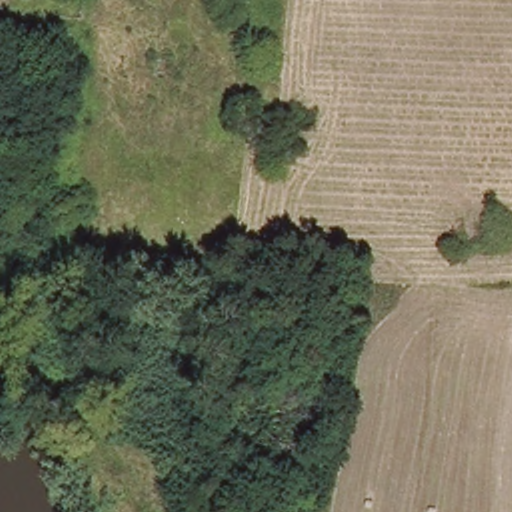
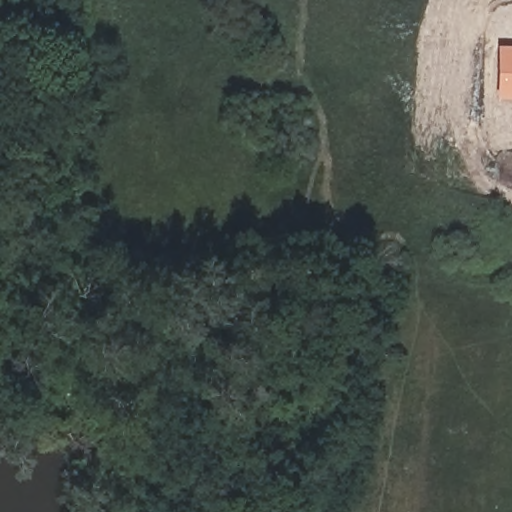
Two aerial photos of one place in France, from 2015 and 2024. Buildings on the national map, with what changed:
new [(498,45),(512,45),(512,98),(498,98),(498,45)]

